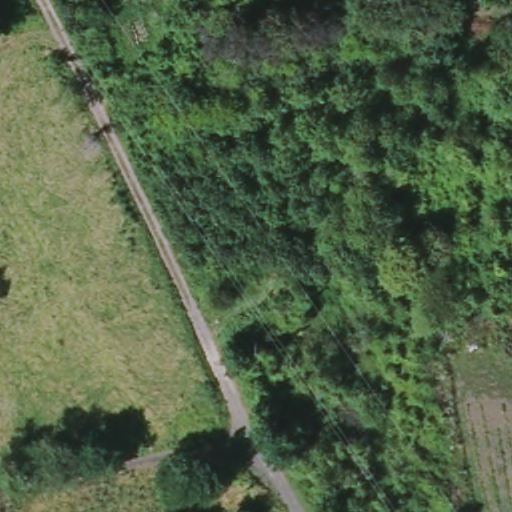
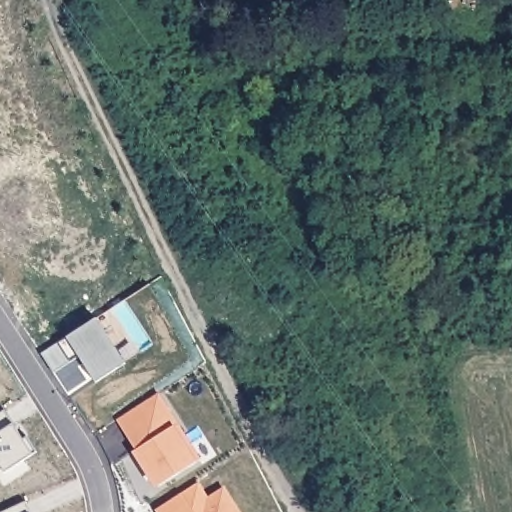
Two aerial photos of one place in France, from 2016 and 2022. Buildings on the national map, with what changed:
new [(53,371),(41,352),(96,316),(125,361),(95,380),(78,354),(53,371)]
new [(115,418),(161,394),(197,464),(152,485),(115,418)]
new [(23,437),(27,434),(38,450),(6,471),(0,463),(0,412),(5,409),(23,437)]
new [(156,509),(198,483),(208,499),(225,489),(239,512),(158,512),(156,509)]
new [(33,512),(0,512),(0,511),(27,499),(33,512)]

